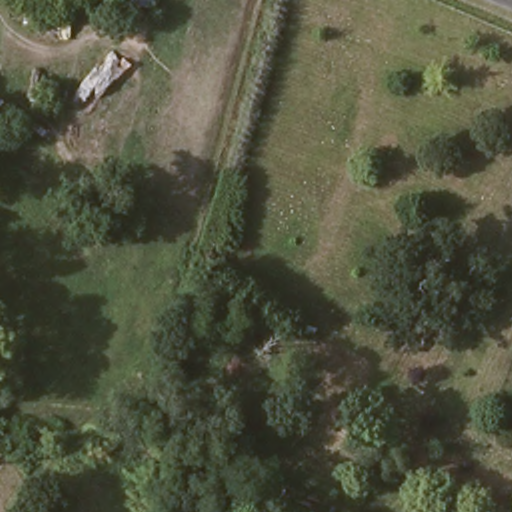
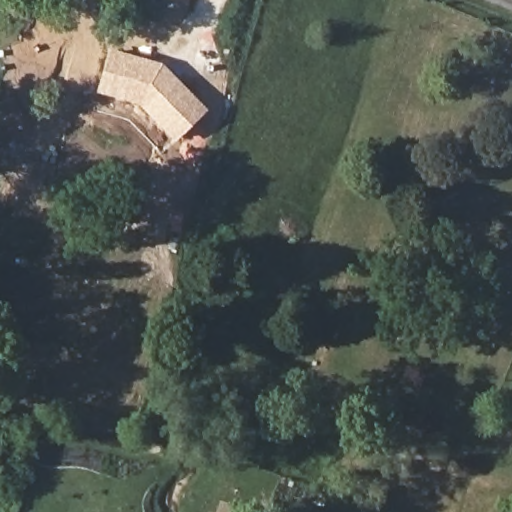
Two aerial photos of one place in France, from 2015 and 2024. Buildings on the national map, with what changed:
new [(207,109),(173,143),(140,104),(96,91),(107,48),(162,63),(207,109)]

